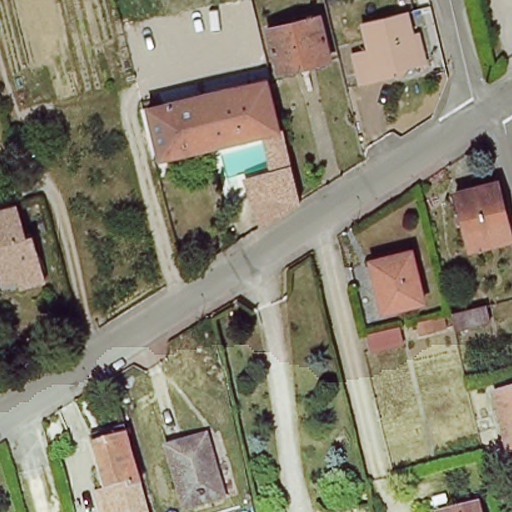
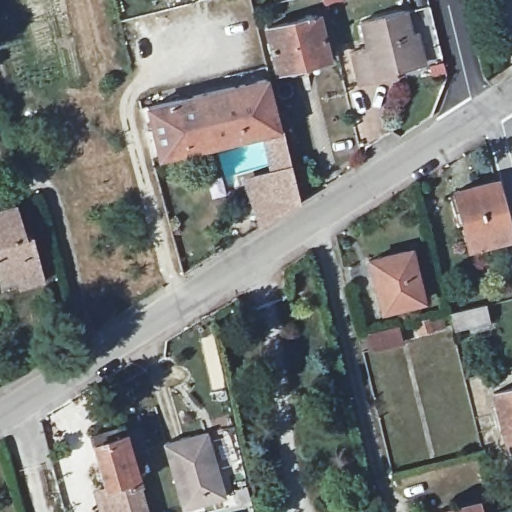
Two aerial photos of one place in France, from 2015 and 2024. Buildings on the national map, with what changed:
unchanged [(393,71),(360,80),(351,49),(366,46),(359,20),(402,10),(416,61),(393,65),(393,71)]
unchanged [(266,26),(312,14),(324,59),(276,72),(266,26)]
unchanged [(287,202),(254,222),(246,187),(269,180),(266,166),(272,162),(262,126),(159,154),(147,104),(260,75),(272,124),(280,123),(297,195),(287,202)]
unchanged [(510,235),(466,246),(452,188),(496,177),(510,235)]
unchanged [(16,279),(2,284),(0,279),(0,211),(14,207),(22,239),(33,237),(41,272),(44,284),(18,290),(16,279)]
unchanged [(371,258),(409,249),(422,299),(382,309),(371,258)]
unchanged [(483,313),(486,329),(452,338),(448,322),(483,313)]
unchanged [(415,328),(439,322),(442,334),(417,339),(415,328)]
unchanged [(367,340),(397,331),(401,348),(371,355),(367,340)]
unchanged [(505,451),(503,441),(491,385),(512,380),(512,450),(505,451)]
unchanged [(134,474),(136,482),(140,496),(144,512),(108,512),(107,505),(99,481),(86,432),(118,422),(134,474)]
unchanged [(164,442),(204,431),(222,492),(182,506),(164,442)]
unchanged [(432,511),(471,501),(473,512),(432,512),(432,511)]

